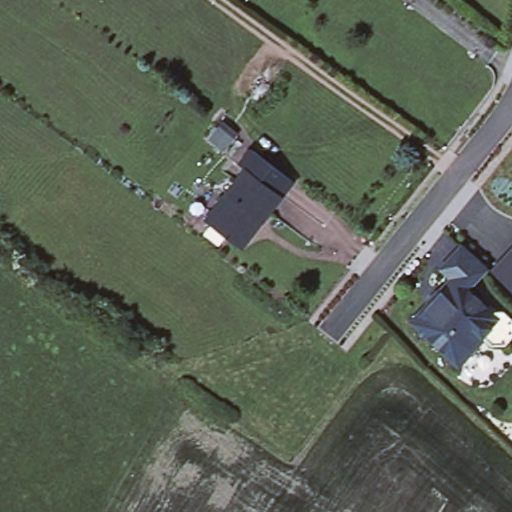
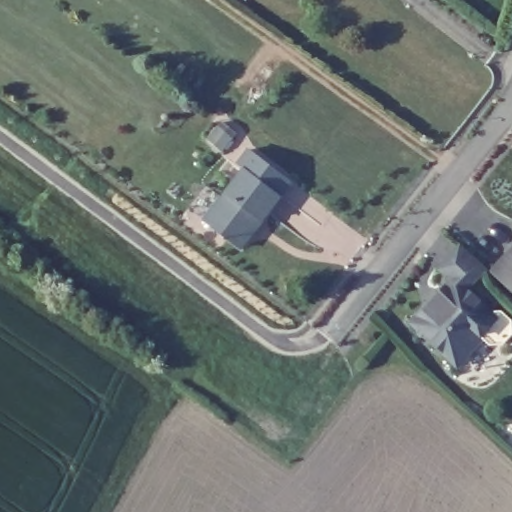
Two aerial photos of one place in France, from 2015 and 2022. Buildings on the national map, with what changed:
unchanged [(233,263),(197,236),(237,184),(231,179),(242,165),(284,197),(273,211),(254,236),(244,249),(233,263)]
unchanged [(467,288),(492,312),(504,311),(512,318),(512,337),(505,345),(492,345),(483,337),(459,363),(415,322),(429,307),(429,302),(438,292),(443,292),(455,279),(444,269),(465,247),(487,267),(467,288)]
unchanged [(512,252),(512,291),(492,273),(512,252)]

